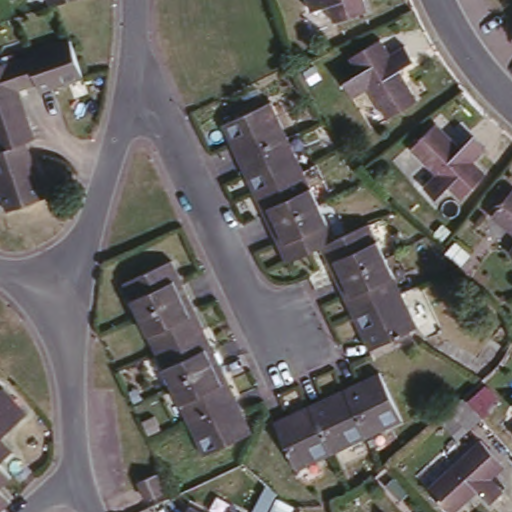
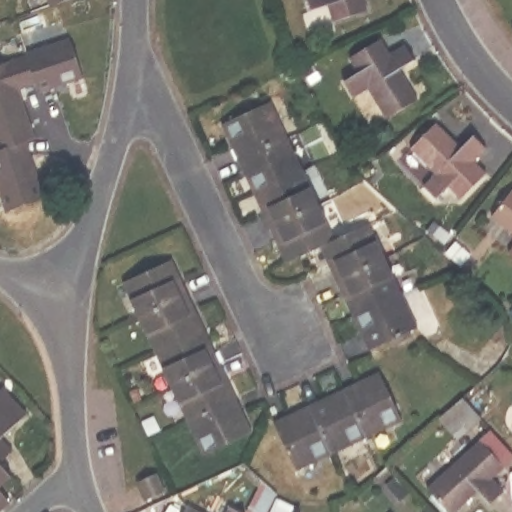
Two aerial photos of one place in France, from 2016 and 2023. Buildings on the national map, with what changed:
unchanged [(65,0),(51,5),(49,0),(65,0)]
unchanged [(309,11),(306,0),(363,0),(366,11),(332,23),(326,6),(309,11)]
unchanged [(0,183),(0,64),(6,62),(7,65),(28,58),(27,56),(69,41),(82,77),(40,92),(37,85),(17,92),(34,139),(25,142),(46,199),(10,212),(0,183)]
unchanged [(366,89),(350,99),(342,84),(357,74),(349,57),(380,41),(388,56),(404,47),(413,62),(398,72),(415,103),(385,122),(366,89)]
unchanged [(362,337),(365,336),(345,295),(341,295),(330,268),(333,267),(322,245),(288,261),(278,238),(274,239),(263,213),(266,212),(246,167),(243,169),(231,143),(235,141),(226,119),(270,99),(335,239),(369,223),(416,328),(367,350),(362,337)]
unchanged [(448,185),(436,196),(423,184),(435,172),(410,146),(435,122),(460,147),(475,135),(486,147),(473,160),(486,172),(461,197),(448,185)]
unchanged [(512,189),(512,237),(489,216),(512,189)]
unchanged [(512,247),(512,260),(505,255),(512,247)]
unchanged [(125,283),(170,262),(179,282),(182,282),(193,307),(190,309),(209,352),(212,351),(224,377),(222,378),(232,401),(235,400),(240,411),(237,412),(246,433),(200,455),(125,283)]
unchanged [(273,417),(286,411),(287,415),(310,405),(308,400),(319,395),(321,399),(344,389),(342,385),(355,379),(357,382),(378,373),(399,420),(295,467),(273,417)]
unchanged [(23,411),(0,434),(0,387),(23,411)]
unchanged [(482,420),(456,442),(434,419),(460,398),(482,420)]
unchanged [(459,512),(448,512),(427,488),(481,441),(493,431),(512,451),(512,462),(505,468),(492,481),(504,495),(490,508),(478,495),(459,512)]
unchanged [(10,449),(0,459),(0,438),(10,449)]
unchanged [(10,476),(0,486),(0,465),(10,476)]
unchanged [(138,483),(158,474),(165,494),(146,503),(138,483)]
unchanged [(276,495),(268,512),(247,512),(262,481),(276,495)]
unchanged [(10,501),(0,510),(0,491),(10,501)]
unchanged [(190,502),(209,512),(185,512),(190,502)]
unchanged [(231,504),(245,512),(226,512),(231,504)]

